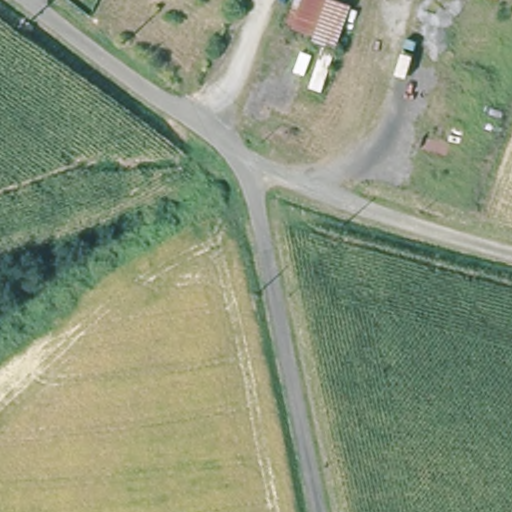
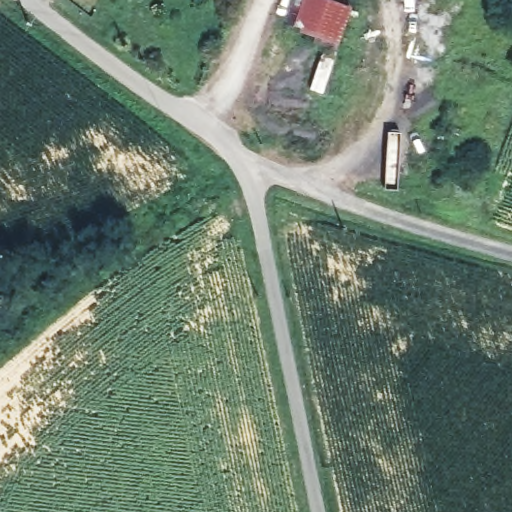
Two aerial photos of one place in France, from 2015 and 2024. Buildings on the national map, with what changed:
unchanged [(352,4),(340,49),(315,40),(314,51),(297,47),(300,32),(294,29),(302,0),(338,0),(352,4)]

